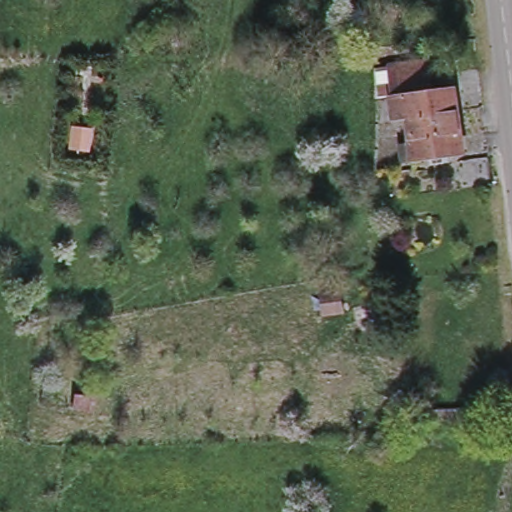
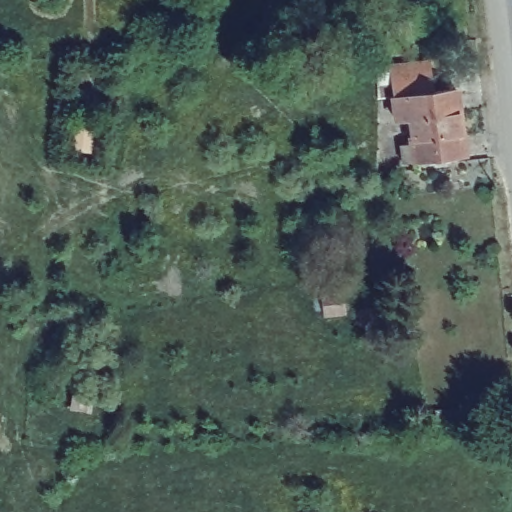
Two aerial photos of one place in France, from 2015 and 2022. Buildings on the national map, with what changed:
unchanged [(402,118),(399,93),(385,95),(382,65),(395,64),(427,59),(435,58),(438,87),(462,84),(471,152),(440,156),(420,158),(409,160),(407,142),(418,140),(415,116),(402,118)]
unchanged [(343,281),(347,313),(325,316),(320,288),(343,281)]

